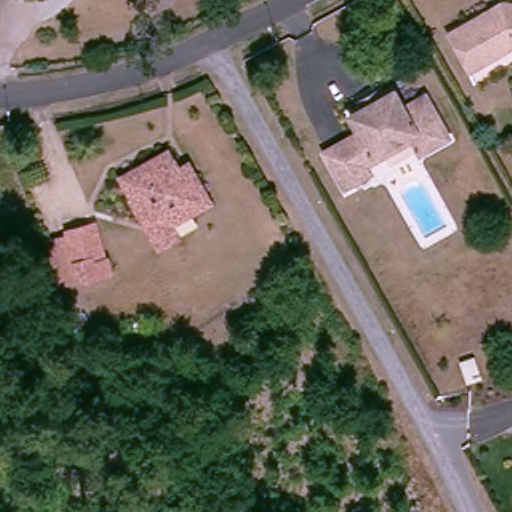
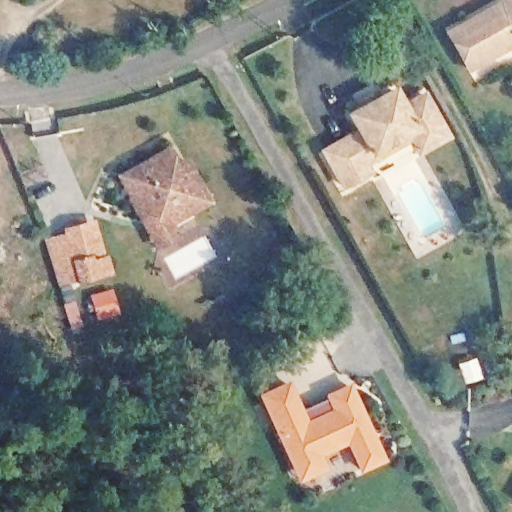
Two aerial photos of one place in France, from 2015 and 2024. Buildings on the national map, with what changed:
unchanged [(447,28),(497,0),(512,0),(512,42),(508,41),(468,64),(447,28)]
unchanged [(370,175),(344,189),(325,154),(360,135),(353,124),(367,116),(370,115),(381,109),(397,100),(407,117),(429,105),(448,140),(420,155),(412,141),(366,167),(370,175)]
unchanged [(182,228),(159,241),(129,189),(119,171),(167,145),(177,162),(187,156),(190,162),(209,196),(190,206),(175,215),(182,228)]
unchanged [(84,259),(69,263),(61,234),(76,230),(84,259)]
unchanged [(100,262),(104,277),(75,285),(70,265),(84,261),(86,266),(100,262)]
new [(360,472),(346,443),(321,455),(327,470),(297,482),(257,393),(289,379),(302,408),(326,398),(323,393),(350,381),(387,461),(360,472)]

